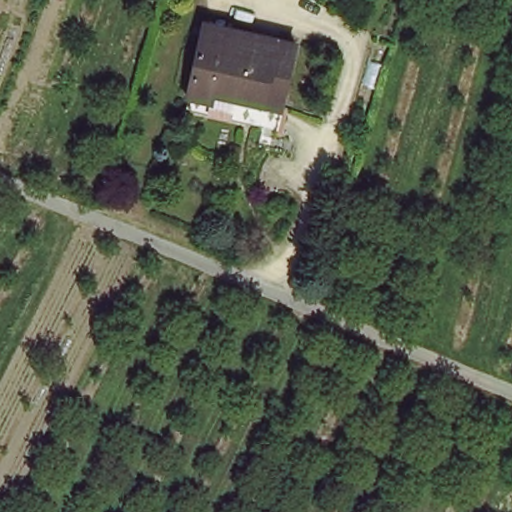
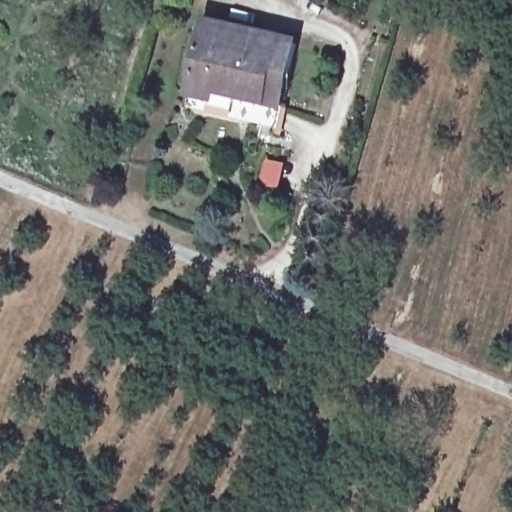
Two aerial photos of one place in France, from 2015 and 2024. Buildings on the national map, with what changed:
unchanged [(263,109),(233,103),(234,96),(210,91),(206,105),(184,100),(200,29),(292,50),(279,104),(277,112),(263,109)]

